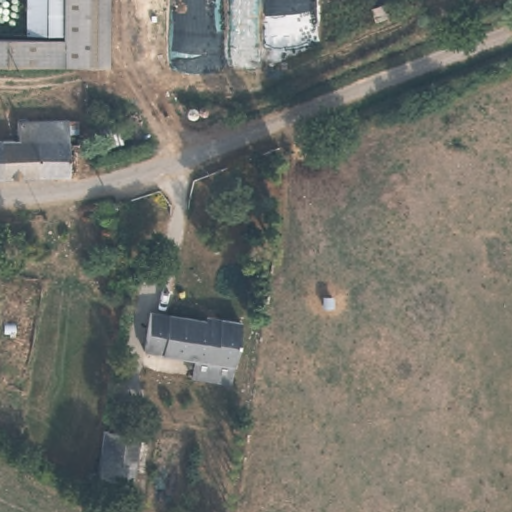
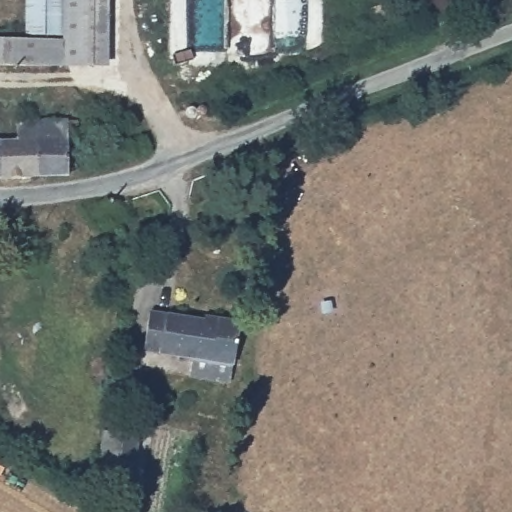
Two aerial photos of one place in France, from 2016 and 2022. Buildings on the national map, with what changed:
unchanged [(27,30),(27,0),(67,0),(67,28),(27,30)]
unchanged [(67,0),(92,0),(94,61),(72,61),(73,28),(67,28),(67,0)]
unchanged [(68,34),(67,61),(0,64),(0,36),(68,34)]
unchanged [(0,173),(0,134),(17,133),(17,114),(79,111),(78,128),(67,128),(67,171),(0,173)]
unchanged [(191,373),(192,357),(146,352),(149,311),(217,320),(217,316),(242,319),(237,362),(231,362),(231,378),(191,373)]
unchanged [(96,486),(103,429),(122,431),(137,433),(134,465),(131,491),(96,486)]

